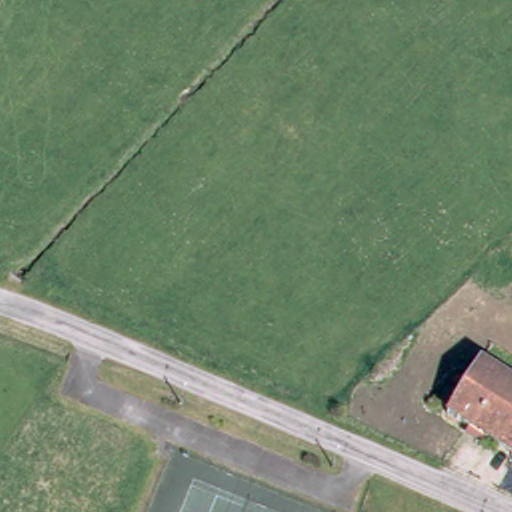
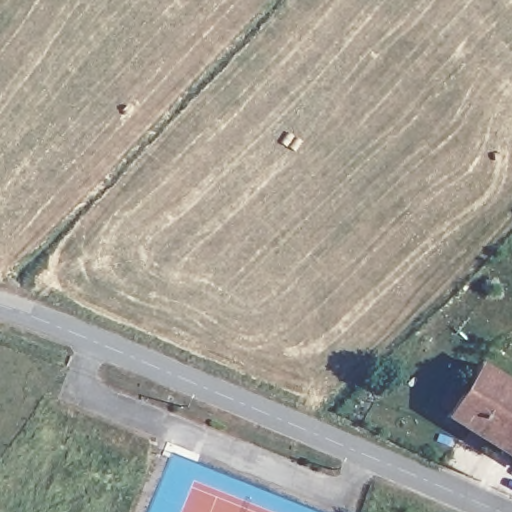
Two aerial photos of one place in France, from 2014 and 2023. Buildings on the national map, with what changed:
unchanged [(453,415),(440,407),(453,388),(462,393),(492,351),(512,363),(512,461),(448,422),(453,415)]

